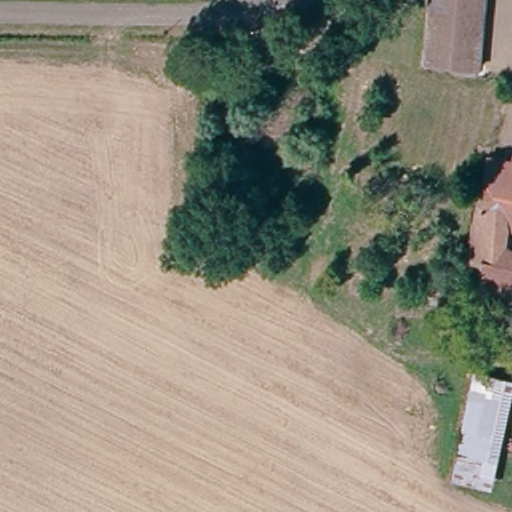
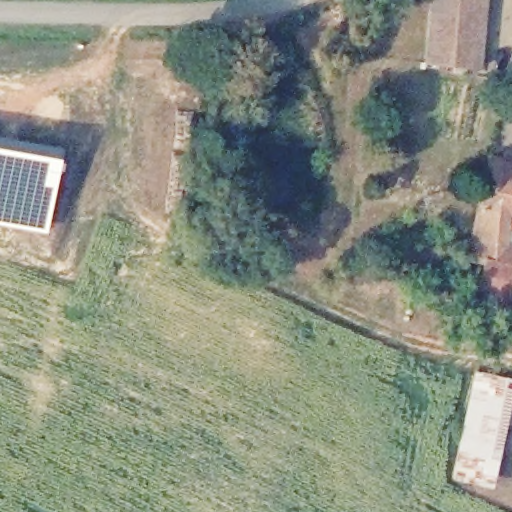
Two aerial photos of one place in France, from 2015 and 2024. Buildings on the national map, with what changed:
unchanged [(437,0),(488,0),(478,70),(428,63),(431,29),(437,0)]
new [(47,233),(0,225),(0,136),(60,147),(47,233)]
unchanged [(495,253),(504,212),(512,173),(512,284),(500,280),(504,265),(493,262),(495,253)]
unchanged [(456,473),(461,452),(478,375),(512,383),(512,402),(499,462),(494,482),(456,473)]

